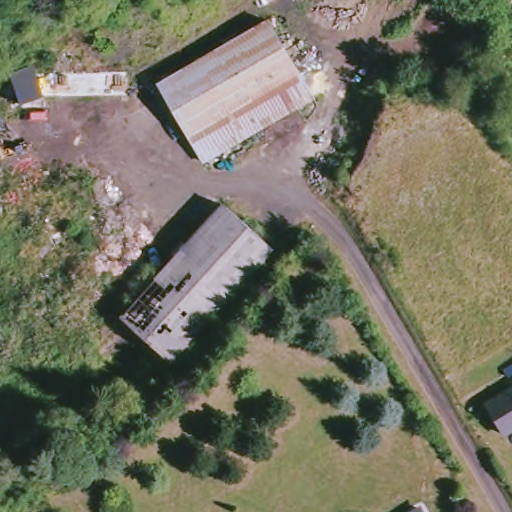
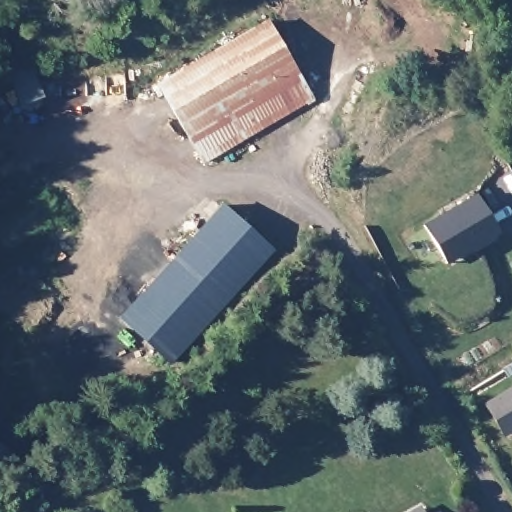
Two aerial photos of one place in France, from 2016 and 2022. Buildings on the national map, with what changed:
unchanged [(206,155),(165,87),(263,21),(316,97),(226,157),(213,166),(206,155)]
unchanged [(11,77),(34,69),(45,97),(21,106),(11,77)]
new [(445,263),(425,225),(476,195),(497,235),(445,263)]
unchanged [(176,368),(125,323),(180,263),(228,209),(278,252),(176,368)]
unchanged [(512,390),(512,434),(506,438),(487,405),(512,390)]

